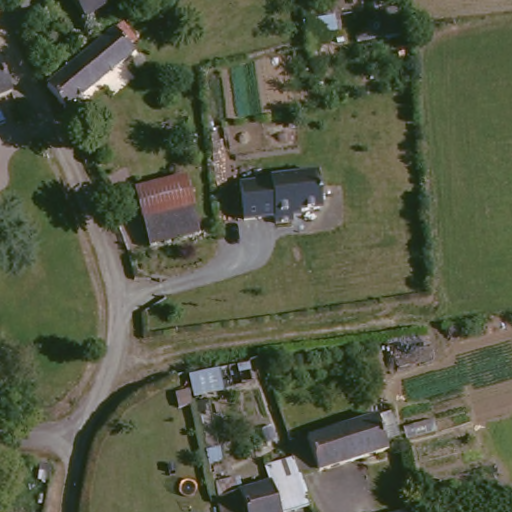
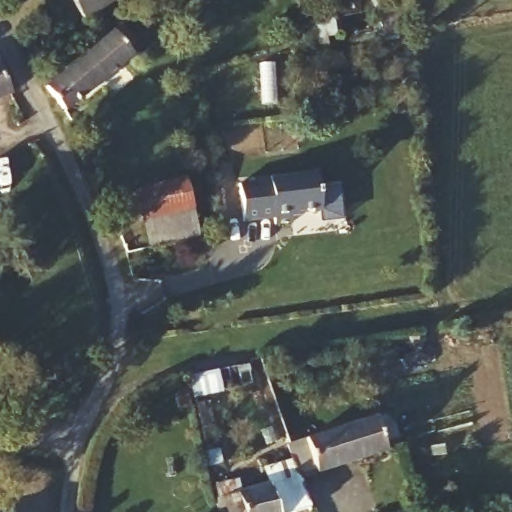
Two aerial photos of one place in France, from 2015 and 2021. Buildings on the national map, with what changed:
unchanged [(72,0),(115,0),(84,20),(72,0)]
unchanged [(308,52),(305,41),(302,27),(330,19),(334,33),(325,35),(329,46),(308,52)]
unchanged [(44,82),(122,26),(130,39),(122,46),(128,55),(60,106),(44,82)]
unchanged [(0,100),(0,72),(10,95),(0,100)]
unchanged [(273,180),(272,177),(319,172),(324,210),(294,213),(295,222),(278,224),(277,217),(247,221),(242,184),(273,180)]
unchanged [(135,222),(125,193),(175,180),(182,207),(182,209),(135,222)]
unchanged [(144,247),(135,222),(182,209),(191,236),(144,247)]
unchanged [(314,475),(312,470),(294,476),(290,465),(285,450),(372,418),(383,452),(314,475)]
unchanged [(306,512),(269,512),(263,493),(257,478),(290,465),(294,476),(307,511),(306,512)]
unchanged [(213,510),(251,497),(263,493),(269,512),(214,512),(213,510)]
unchanged [(391,510),(400,508),(406,506),(408,512),(392,512),(391,510)]

